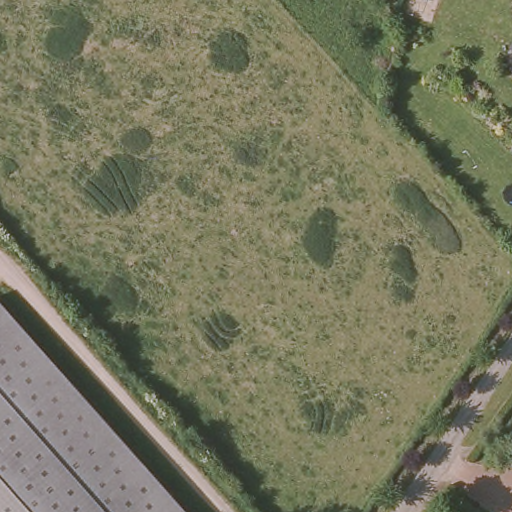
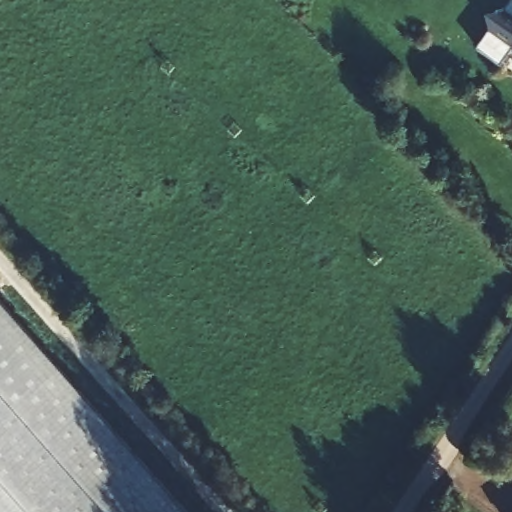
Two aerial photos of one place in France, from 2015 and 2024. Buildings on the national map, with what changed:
new [(500,60),(478,45),(489,29),(484,10),(502,9),(508,0),(512,0),(512,41),(510,44),(500,60)]
unchanged [(512,41),(512,45),(510,44),(512,41)]
unchanged [(0,294),(194,512),(0,512),(0,294)]

